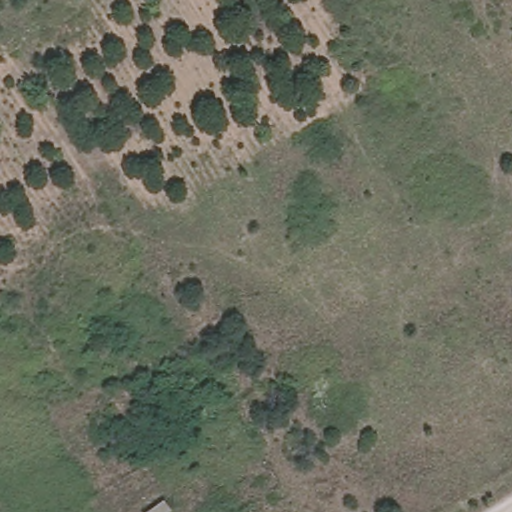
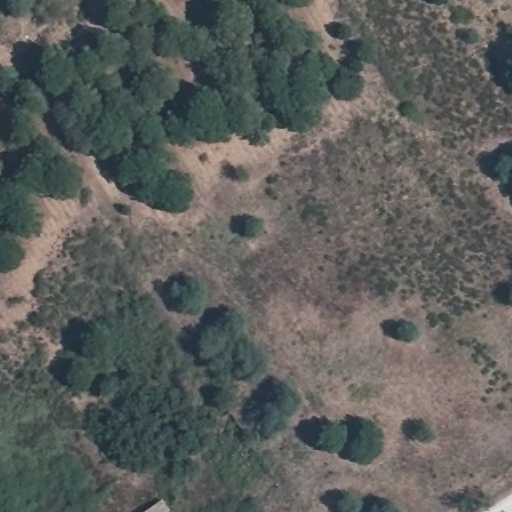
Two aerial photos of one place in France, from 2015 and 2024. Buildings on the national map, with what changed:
unchanged [(141,512),(164,495),(176,510),(173,512),(141,512)]

